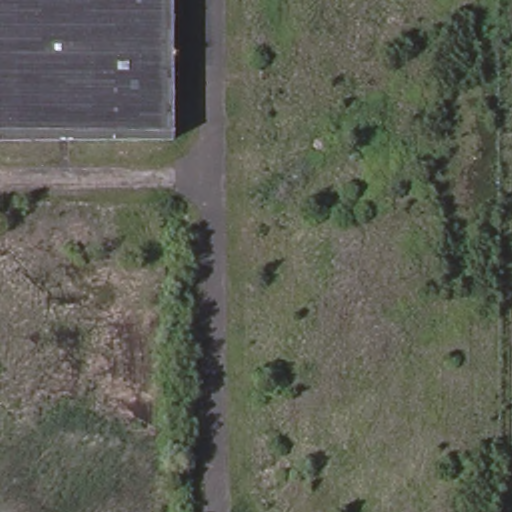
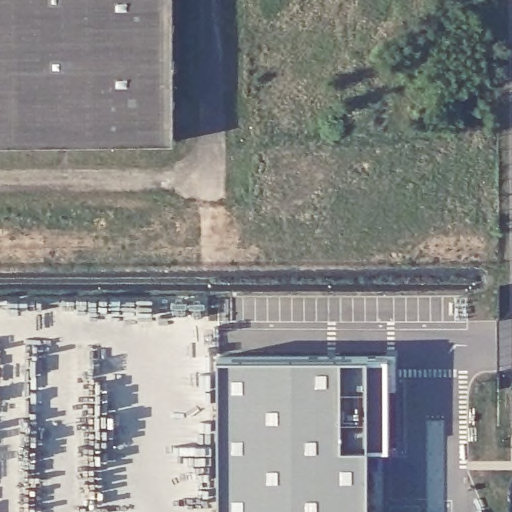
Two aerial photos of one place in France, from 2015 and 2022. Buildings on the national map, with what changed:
unchanged [(0,140),(0,0),(172,0),(172,139),(0,140)]
new [(386,362),(385,454),(367,454),(367,512),(219,512),(216,365),(386,362)]

